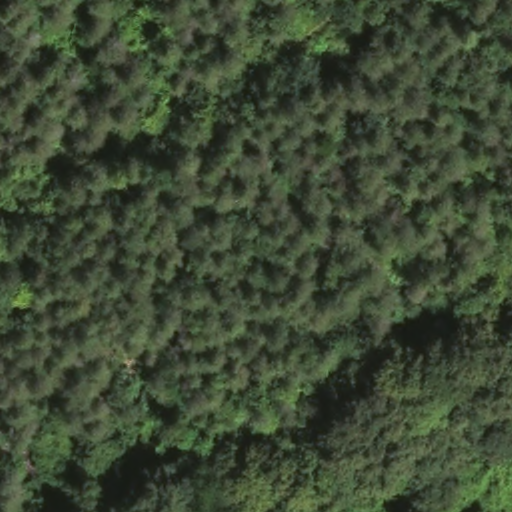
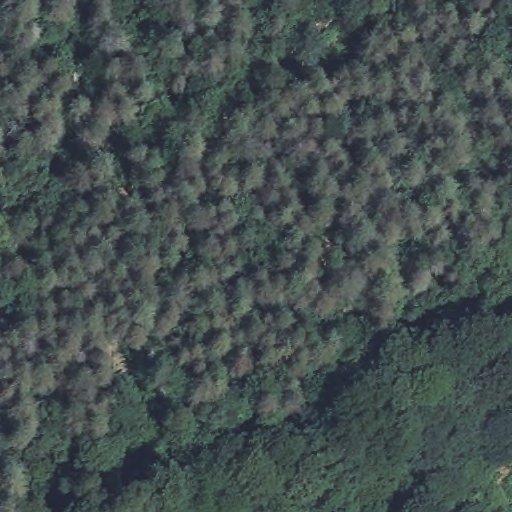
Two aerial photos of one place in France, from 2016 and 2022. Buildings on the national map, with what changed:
[]

